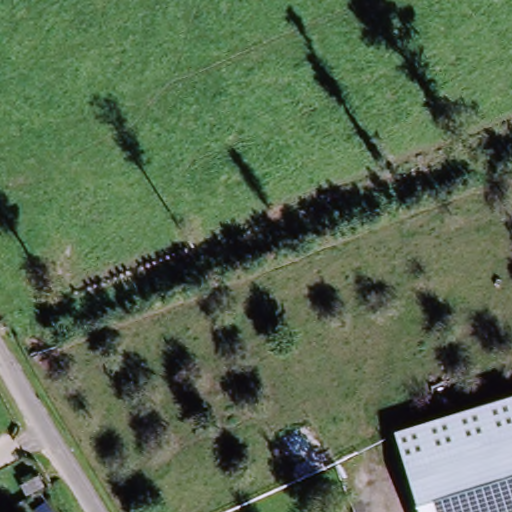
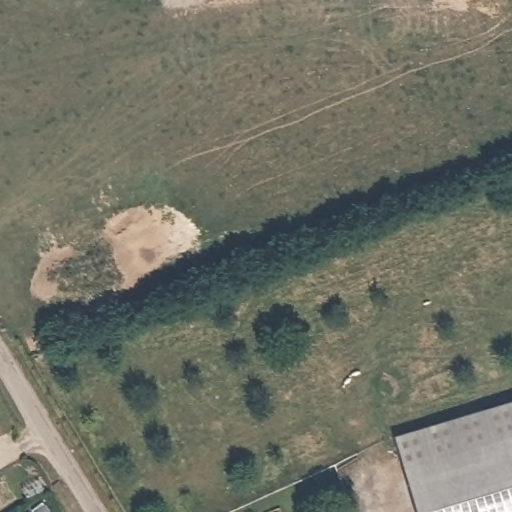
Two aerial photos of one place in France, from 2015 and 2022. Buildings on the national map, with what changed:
unchanged [(512,392),(512,512),(413,512),(389,430),(512,392)]

